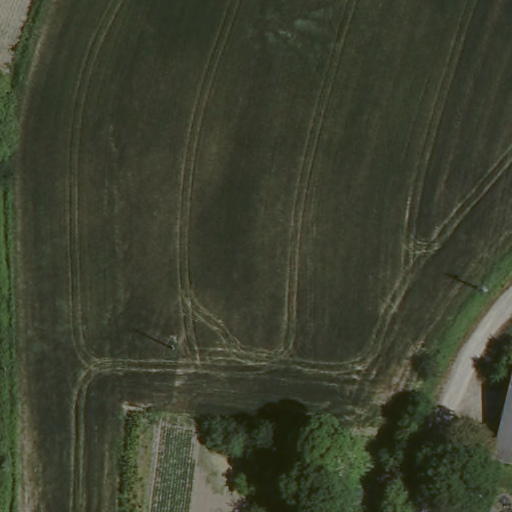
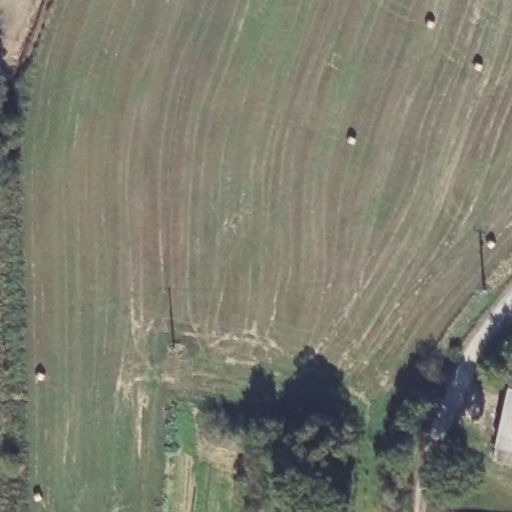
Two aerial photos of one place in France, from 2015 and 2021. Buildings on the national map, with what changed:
unchanged [(499,447),(496,447),(512,386),(512,463),(497,459),(499,447)]
unchanged [(438,512),(439,511),(453,512),(438,512)]

